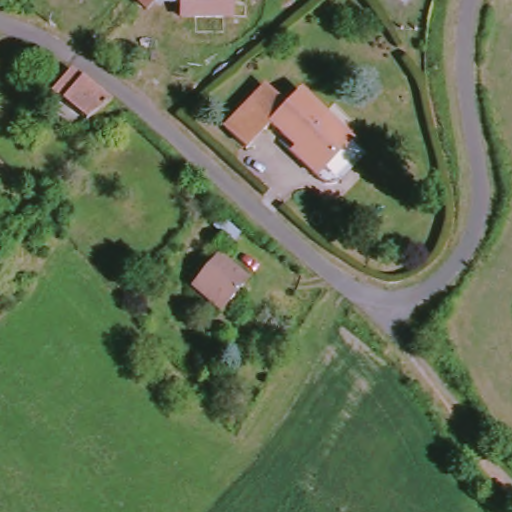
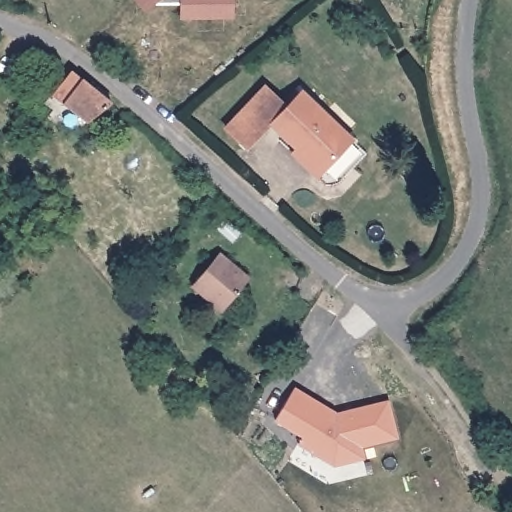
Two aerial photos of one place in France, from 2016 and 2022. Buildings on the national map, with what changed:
unchanged [(177,19),(176,2),(150,3),(143,10),(132,0),(231,0),(231,18),(177,19)]
unchanged [(89,120),(65,99),(85,76),(112,99),(89,120)]
unchanged [(297,153),(270,121),(242,145),(224,122),(272,84),(291,105),(313,87),(318,93),(321,92),(374,158),(331,193),(312,191),(307,184),(288,160),(297,153)]
unchanged [(223,250),(255,280),(227,311),(195,286),(223,250)]
new [(337,412),(389,400),(398,438),(362,447),(365,458),(335,465),(298,444),(302,437),(275,420),(295,388),(337,412)]

